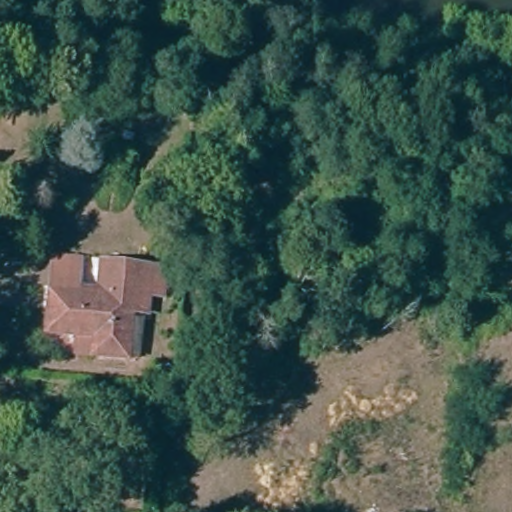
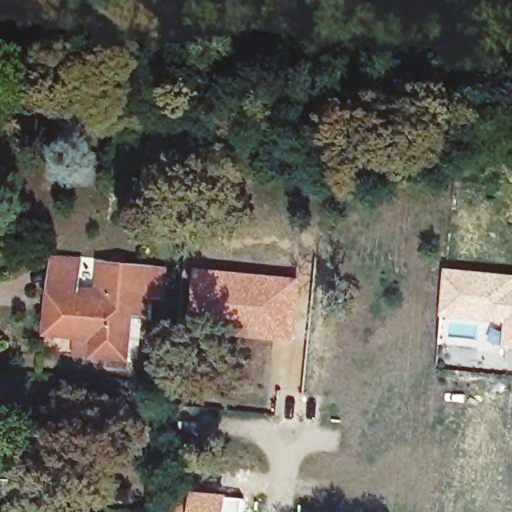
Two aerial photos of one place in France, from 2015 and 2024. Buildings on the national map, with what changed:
unchanged [(61,291),(64,261),(64,256),(88,258),(87,261),(84,294),(118,298),(119,291),(114,291),(116,272),(117,262),(140,266),(161,268),(155,316),(140,315),(136,356),(89,352),(90,333),(57,330),(61,291)]
new [(193,267),(300,277),(294,342),(256,337),(186,320),(193,267)]
new [(512,273),(512,347),(503,347),(505,323),(442,316),(446,267),(512,273)]
new [(174,492),(192,492),(190,512),(172,512),(174,492)]
new [(243,512),(190,512),(192,492),(229,496),(245,498),(243,512)]

